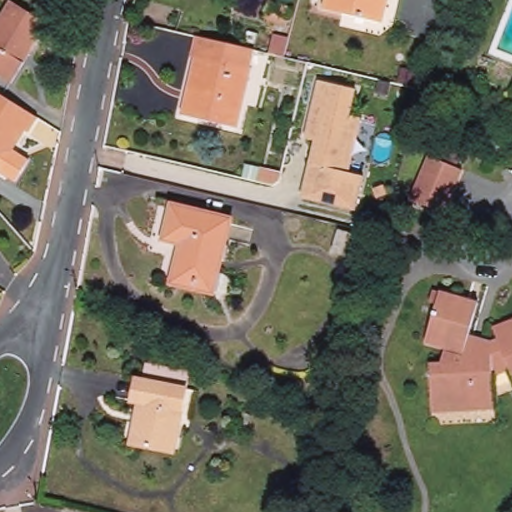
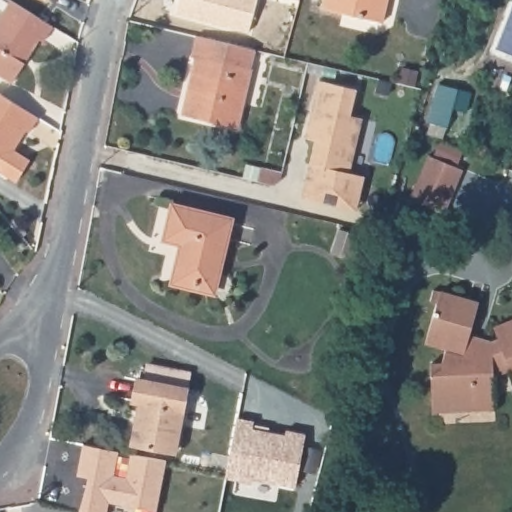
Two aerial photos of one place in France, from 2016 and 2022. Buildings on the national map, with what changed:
unchanged [(385,20),(325,7),(327,0),(389,0),(385,20)]
unchanged [(10,1),(52,28),(41,45),(37,42),(9,85),(0,79),(0,17),(10,1)]
unchanged [(189,59),(195,37),(255,53),(231,132),(177,117),(194,60),(189,59)]
unchanged [(303,197),(315,138),(306,135),(320,80),(356,89),(351,114),(362,117),(350,171),(365,175),(357,213),(303,197)]
unchanged [(39,120),(30,135),(25,131),(15,147),(17,149),(1,173),(0,172),(0,95),(39,120)]
unchanged [(459,171),(440,216),(406,202),(424,157),(459,171)]
unchanged [(171,207),(230,223),(210,297),(169,284),(179,246),(161,241),(171,207)]
unchanged [(448,295),(485,310),(472,342),(492,351),(500,349),(496,340),(512,334),(512,379),(510,374),(494,380),(495,403),(431,407),(428,366),(440,366),(450,344),(430,336),(448,295)]
unchanged [(134,384),(141,385),(144,370),(175,374),(186,376),(184,391),(173,456),(131,449),(138,406),(131,405),(134,384)]
new [(236,416),(254,420),(253,427),(285,434),(285,430),(305,434),(296,486),(247,477),(246,483),(225,478),(236,416)]
new [(75,476),(81,443),(119,450),(115,475),(125,476),(129,453),(166,460),(156,512),(107,503),(106,512),(79,512),(85,477),(75,476)]

